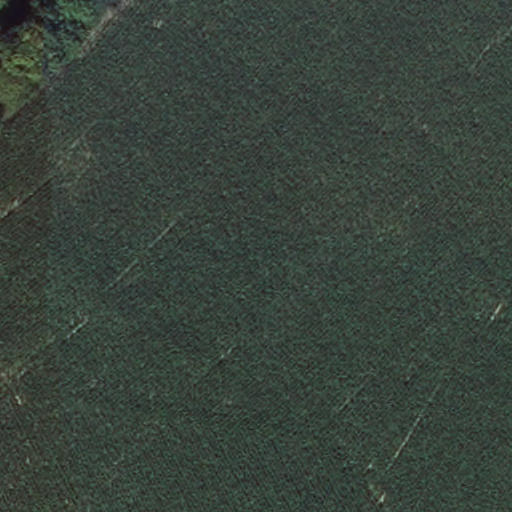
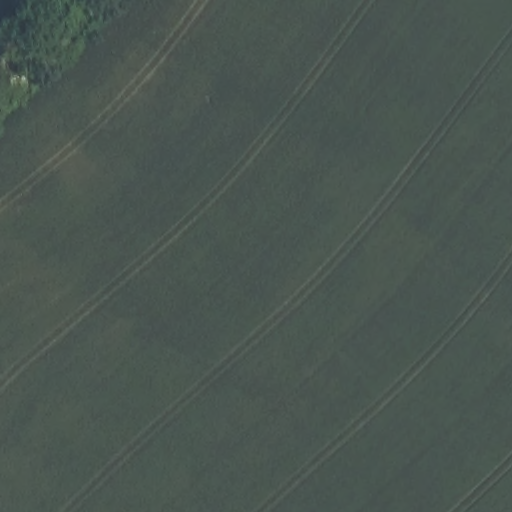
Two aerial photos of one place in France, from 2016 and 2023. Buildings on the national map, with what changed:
[]

